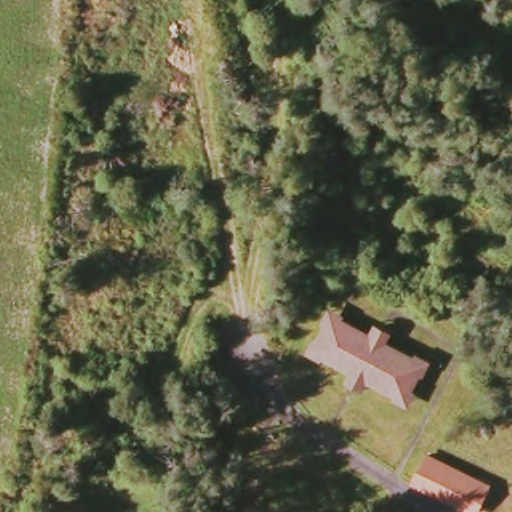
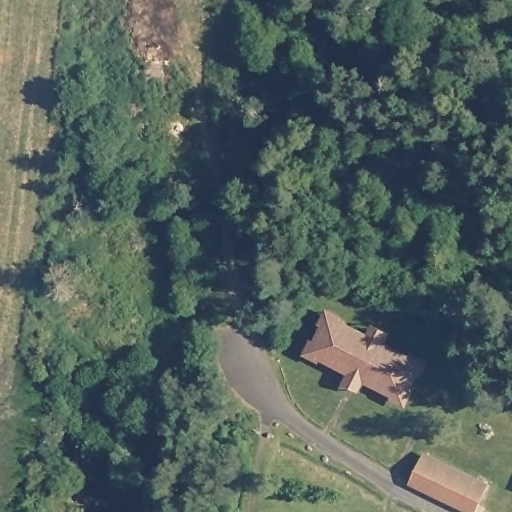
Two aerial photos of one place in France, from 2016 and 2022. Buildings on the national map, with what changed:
unchanged [(361,380),(328,363),(320,345),(330,330),(331,333),(344,326),(369,339),(375,331),(384,336),(361,380)]
unchanged [(392,340),(390,349),(415,362),(414,373),(421,377),(413,395),(412,392),(405,392),(398,398),(361,380),(384,336),(392,340)]
unchanged [(478,512),(477,512),(417,485),(428,460),(490,486),(478,512)]

